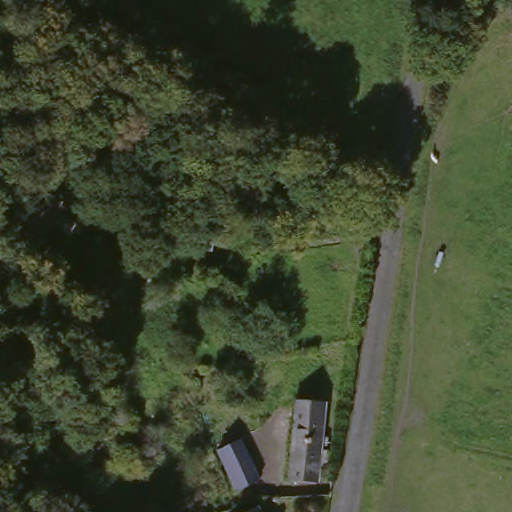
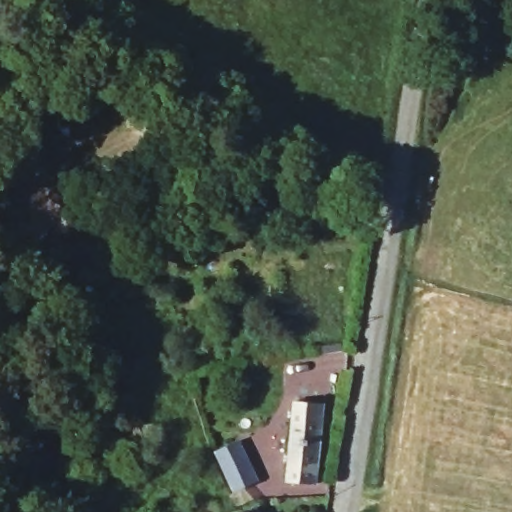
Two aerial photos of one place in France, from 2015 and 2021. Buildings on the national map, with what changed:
unchanged [(287,482),(294,402),(324,404),(317,484),(287,482)]
unchanged [(231,492),(212,451),(234,441),(253,482),(231,492)]

